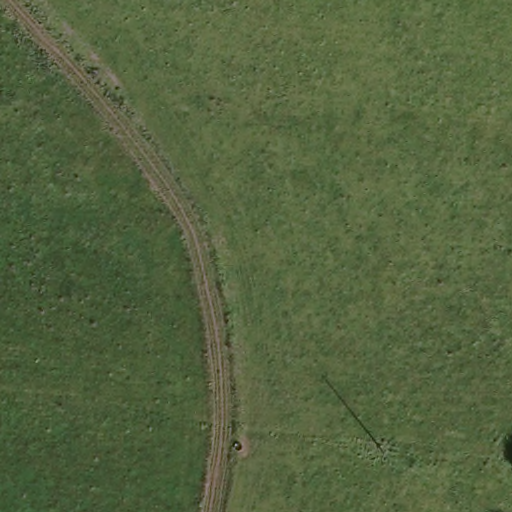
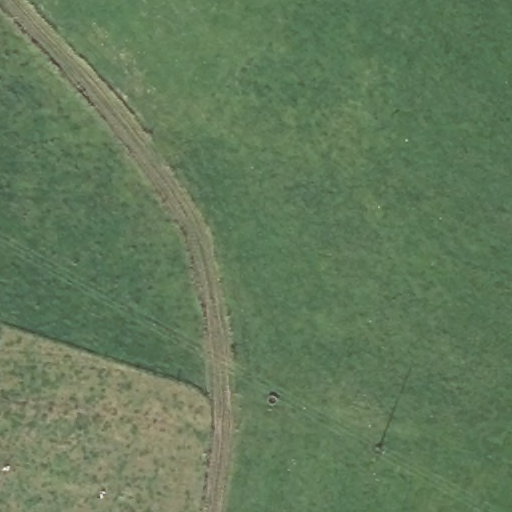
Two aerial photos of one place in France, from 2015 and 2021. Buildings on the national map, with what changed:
[]

